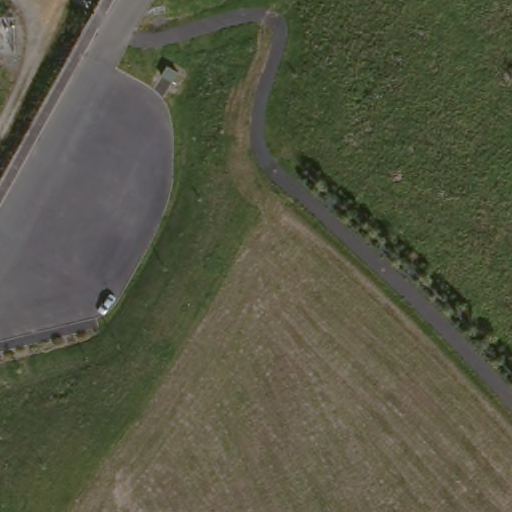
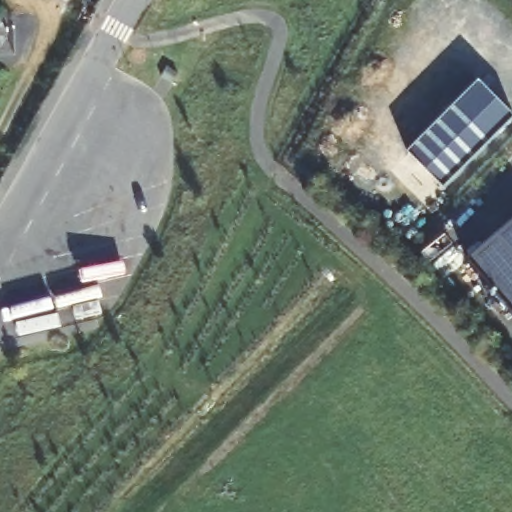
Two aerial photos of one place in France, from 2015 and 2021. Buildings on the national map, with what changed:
new [(488,78),(512,102),(512,127),(453,185),(417,149),(488,78)]
new [(475,255),(512,225),(512,300),(475,255)]

